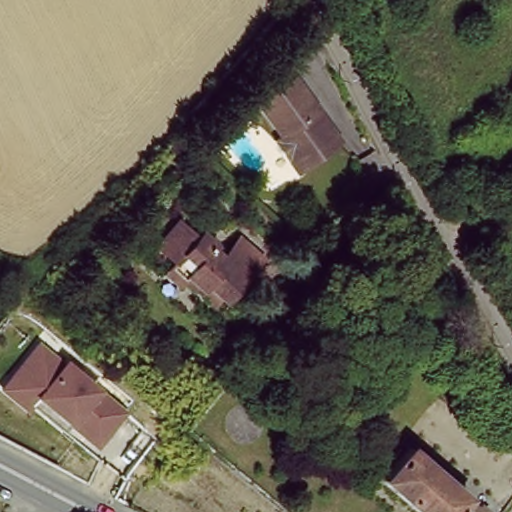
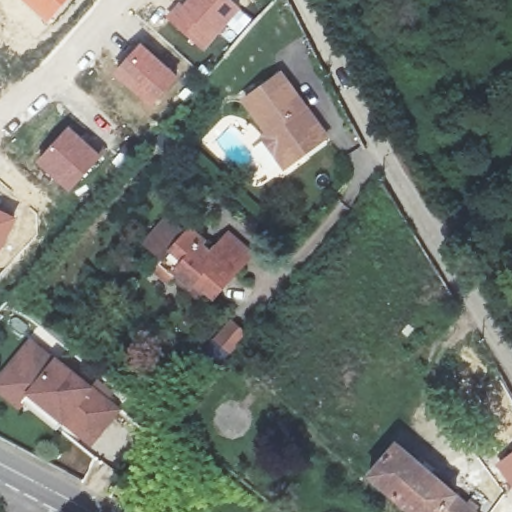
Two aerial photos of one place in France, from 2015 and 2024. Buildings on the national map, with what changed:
new [(25,0),(68,0),(49,22),(25,0)]
new [(230,0),(241,10),(203,51),(165,18),(183,0),(230,0)]
new [(142,41),(180,77),(152,108),(114,73),(142,41)]
unchanged [(309,157),(286,176),(257,142),(263,137),(238,108),(279,74),(302,105),(297,110),(317,121),(326,133),(331,139),(309,157)]
new [(69,125),(102,155),(69,192),(36,162),(69,125)]
new [(0,255),(0,208),(18,216),(0,255)]
unchanged [(171,274),(156,261),(162,252),(154,244),(153,228),(168,213),(184,225),(190,219),(205,233),(202,238),(211,245),(228,228),(255,252),(220,292),(208,306),(171,274)]
unchanged [(93,446),(31,395),(21,408),(0,392),(0,380),(35,337),(124,407),(93,446)]
unchanged [(442,493),(462,512),(400,512),(366,483),(394,452),(442,493)]
unchanged [(506,458),(512,454),(512,467),(506,458)]
unchanged [(506,485),(512,479),(512,493),(506,485)]

